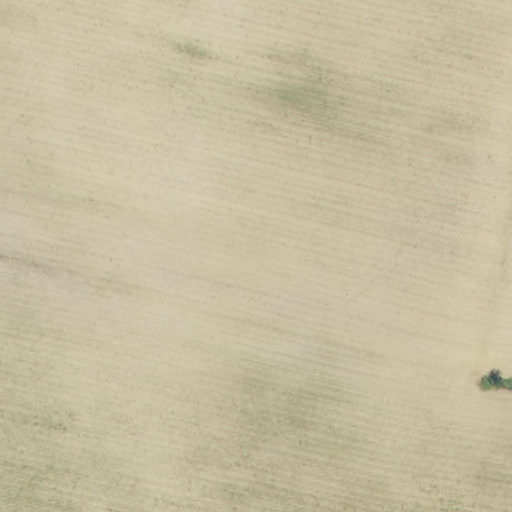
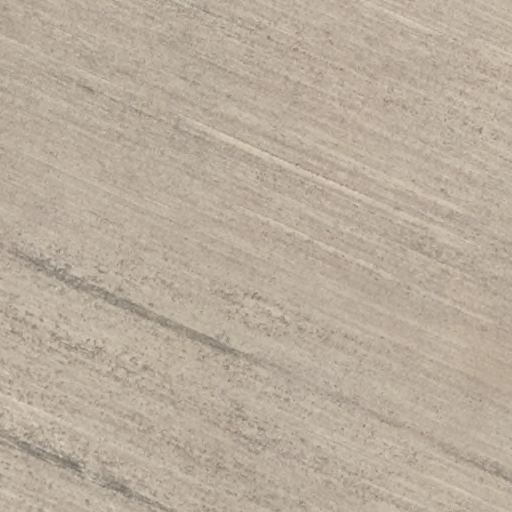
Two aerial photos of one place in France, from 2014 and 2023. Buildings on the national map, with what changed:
[]

